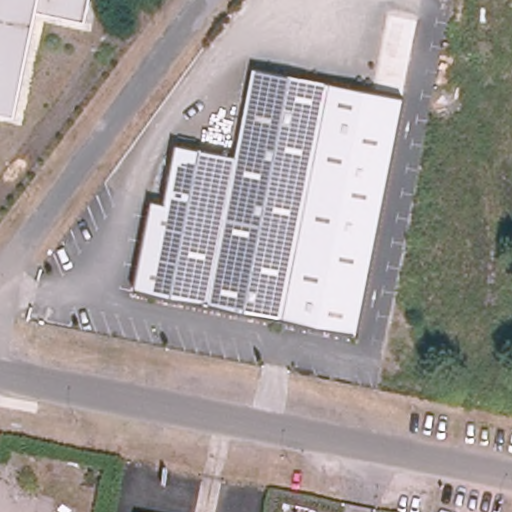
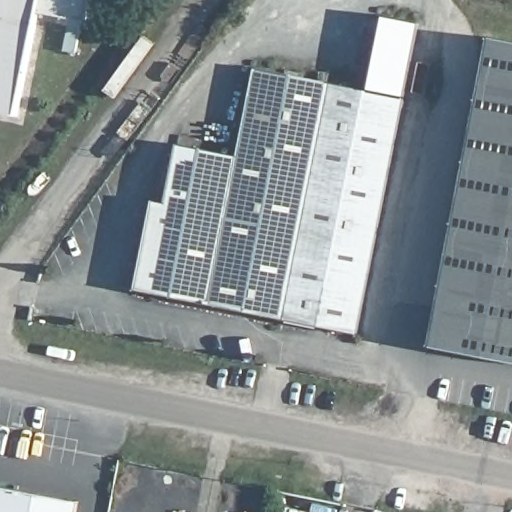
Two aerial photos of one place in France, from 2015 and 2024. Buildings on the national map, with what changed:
unchanged [(85,20),(35,14),(14,114),(0,113),(0,0),(89,0),(85,20)]
unchanged [(359,334),(137,290),(155,200),(229,215),(257,69),(371,92),(386,21),(420,25),(406,99),(359,334)]
new [(512,42),(512,362),(431,347),(491,38),(512,42)]
new [(181,145),(240,156),(229,215),(169,202),(181,145)]
new [(80,503),(78,512),(0,512),(0,489),(80,503)]

